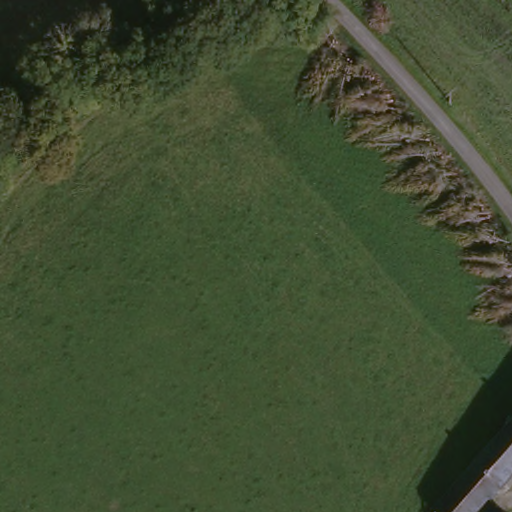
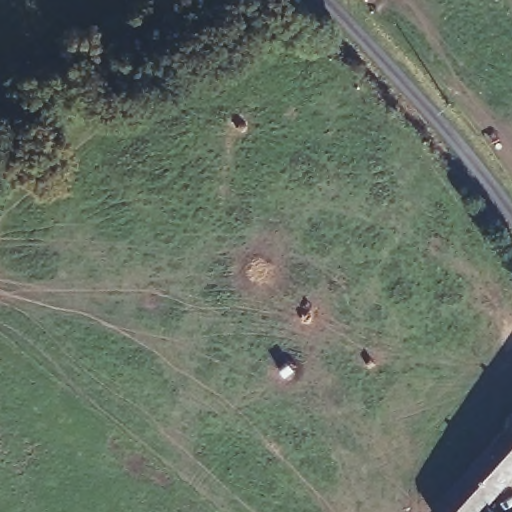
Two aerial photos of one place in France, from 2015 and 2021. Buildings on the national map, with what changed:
unchanged [(512,480),(496,498),(468,475),(512,426),(512,480)]
unchanged [(487,508),(483,512),(435,512),(468,475),(496,498),(487,508)]
unchanged [(492,512),(483,512),(487,508),(492,512)]

